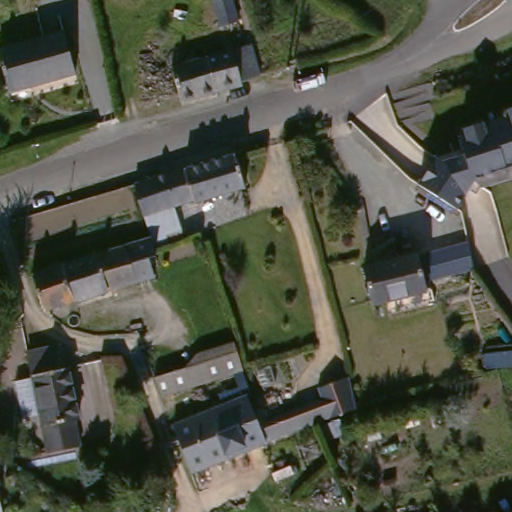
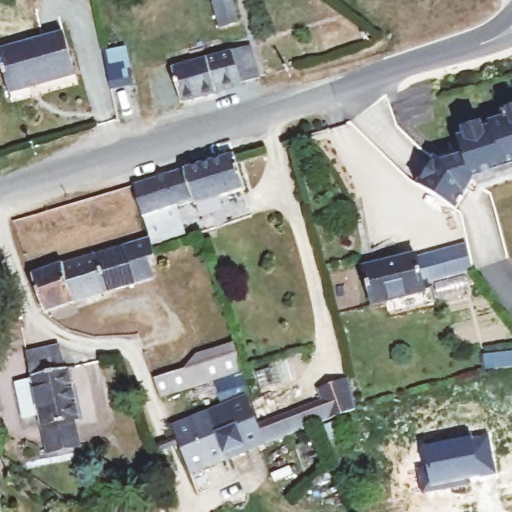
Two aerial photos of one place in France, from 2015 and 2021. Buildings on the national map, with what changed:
unchanged [(3,99),(0,87),(0,55),(58,39),(69,80),(3,99)]
new [(126,49),(133,86),(111,91),(104,54),(126,49)]
unchanged [(210,97),(211,99),(175,110),(165,76),(219,60),(244,52),(254,84),(210,97)]
unchanged [(455,206),(419,183),(432,162),(435,156),(461,147),(458,138),(491,127),(489,122),(512,114),(512,165),(472,179),(455,206)]
unchanged [(132,181),(233,152),(243,185),(192,200),(192,197),(171,204),(181,235),(151,246),(148,234),(132,181)]
unchanged [(148,235),(151,246),(151,247),(153,254),(147,255),(152,273),(137,278),(134,279),(105,288),(78,296),(66,261),(79,257),(128,241),(148,235)]
unchanged [(415,283),(417,293),(385,301),(364,307),(355,269),(408,256),(409,258),(459,246),(465,272),(415,283)]
unchanged [(78,296),(71,298),(43,308),(30,271),(61,261),(62,262),(66,261),(78,296)]
unchanged [(49,450),(44,423),(42,411),(25,415),(17,378),(35,375),(30,350),(62,343),(66,366),(67,366),(71,365),(81,416),(76,417),(81,443),(49,450)]
unchanged [(153,404),(146,385),(177,375),(188,361),(225,350),(234,378),(153,404)]
unchanged [(485,361),(512,358),(512,372),(486,375),(485,361)]
unchanged [(318,386),(350,375),(357,406),(327,417),(321,397),(319,387),(318,386)]
unchanged [(174,423),(248,393),(256,413),(259,421),(267,440),(192,471),(174,423)]
unchanged [(321,397),(327,417),(267,440),(259,421),(321,397)]
new [(427,470),(423,450),(445,446),(444,441),(470,436),(471,441),(489,437),(496,475),(469,481),(470,485),(450,488),(449,484),(441,486),(442,491),(421,495),(417,471),(427,470)]
unchanged [(158,490),(162,500),(132,512),(106,512),(148,495),(158,490)]

